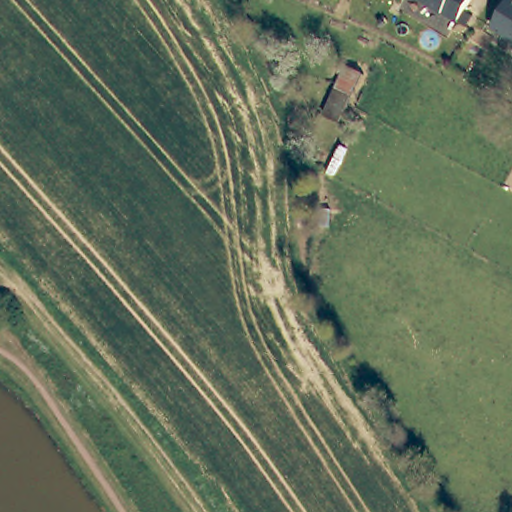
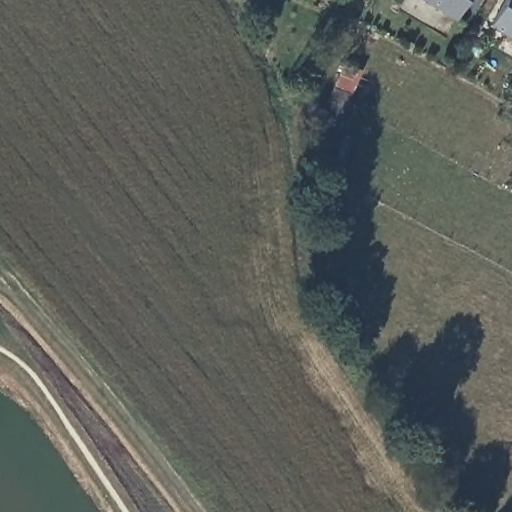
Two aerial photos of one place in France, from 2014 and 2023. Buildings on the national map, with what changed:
unchanged [(441,0),(474,0),(465,15),(441,0)]
unchanged [(499,20),(511,0),(512,0),(512,27),(499,20)]

